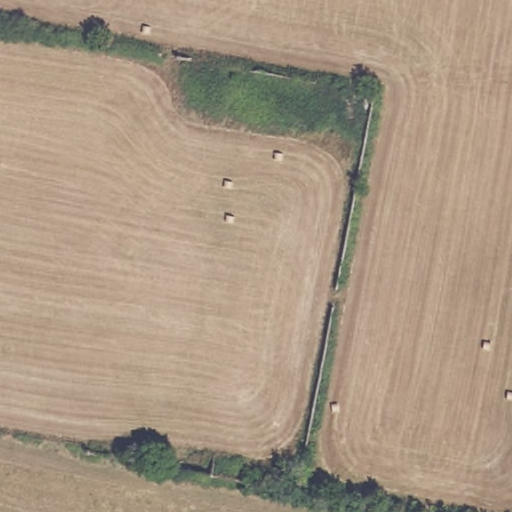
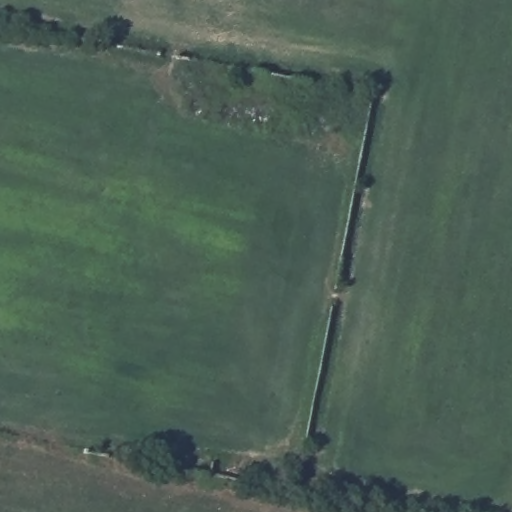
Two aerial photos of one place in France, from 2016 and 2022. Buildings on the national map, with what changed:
unchanged [(169,465),(173,443),(218,451),(214,473),(169,465)]

